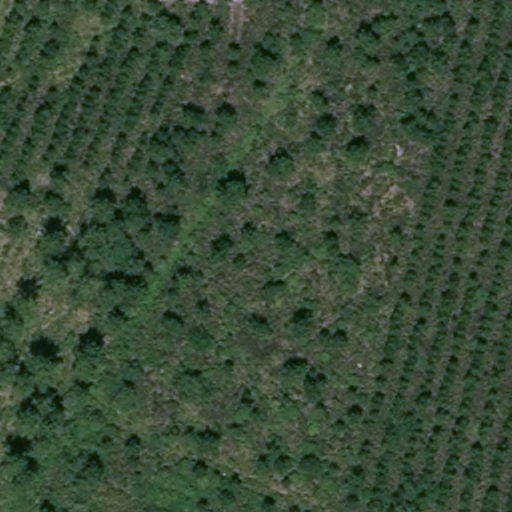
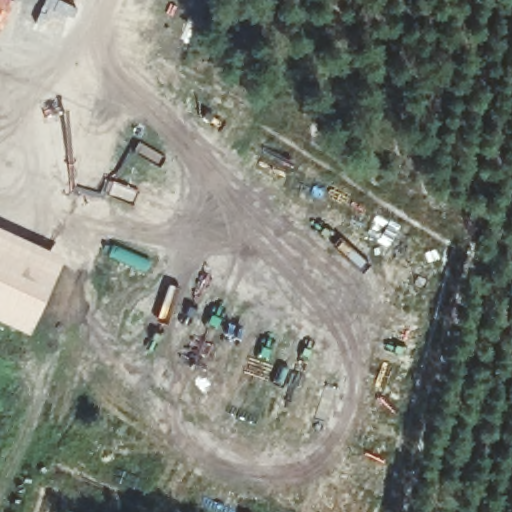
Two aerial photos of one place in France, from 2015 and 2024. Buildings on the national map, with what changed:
new [(79,1),(77,0),(80,0),(79,1)]
new [(65,257),(29,335),(0,322),(0,228),(65,257)]

